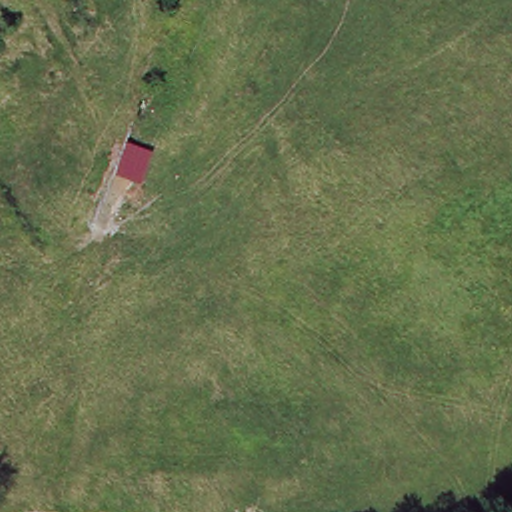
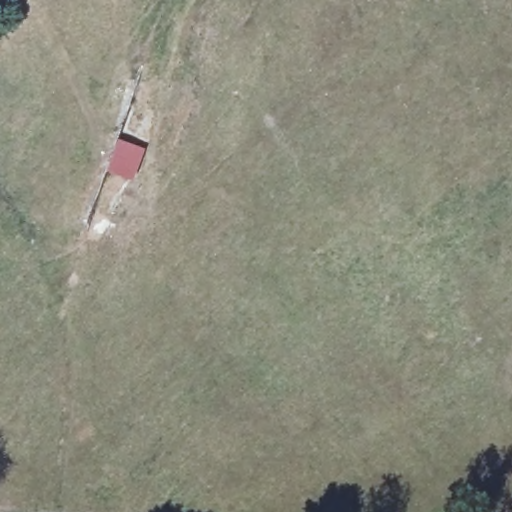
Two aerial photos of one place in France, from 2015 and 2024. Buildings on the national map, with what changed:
unchanged [(131,183),(104,175),(115,142),(136,150),(131,183)]

